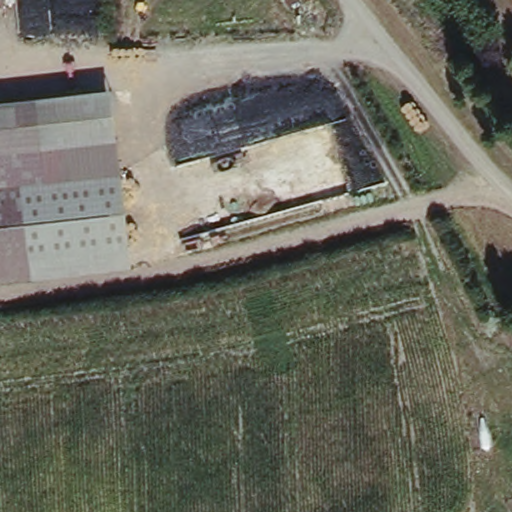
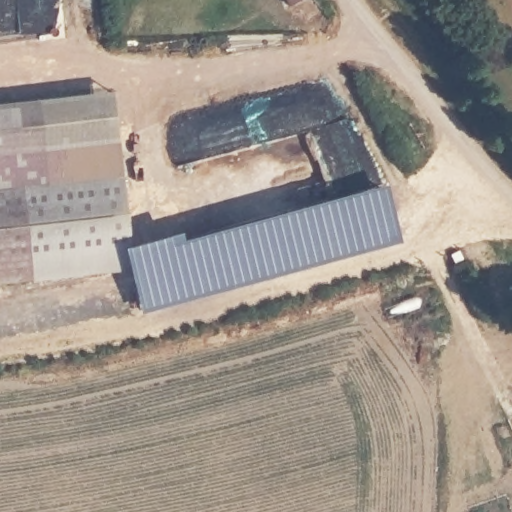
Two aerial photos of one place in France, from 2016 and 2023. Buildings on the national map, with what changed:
new [(287,0),(301,0),(290,6),(287,0)]
unchanged [(111,89),(129,252),(132,268),(0,282),(0,103),(111,89)]
new [(144,320),(132,268),(129,252),(381,192),(393,258),(144,320)]

